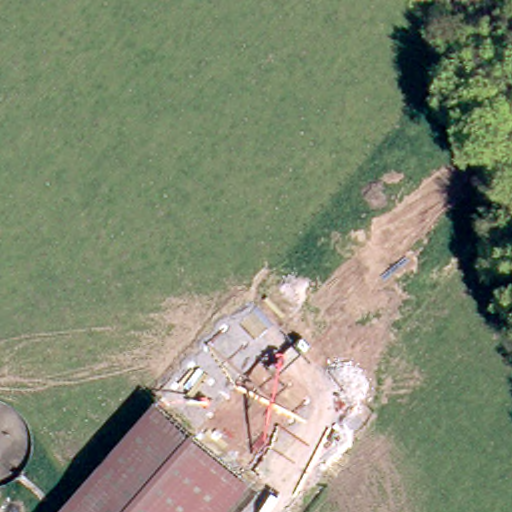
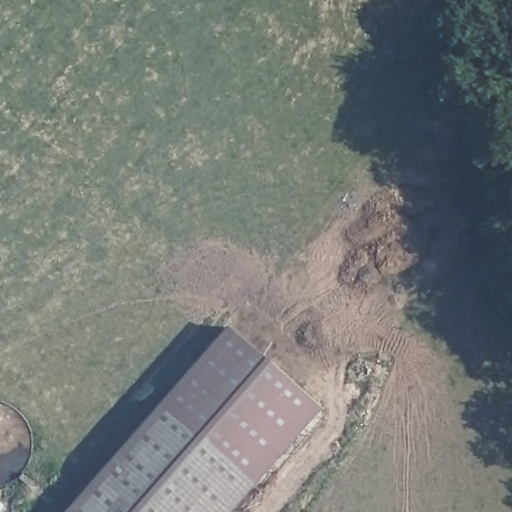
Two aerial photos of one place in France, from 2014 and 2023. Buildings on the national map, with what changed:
new [(154,399),(223,325),(319,407),(254,482),(154,399)]
unchanged [(254,482),(229,512),(57,512),(154,399),(254,482)]

